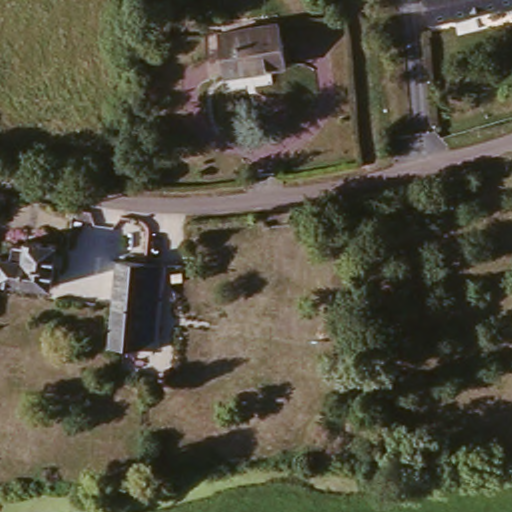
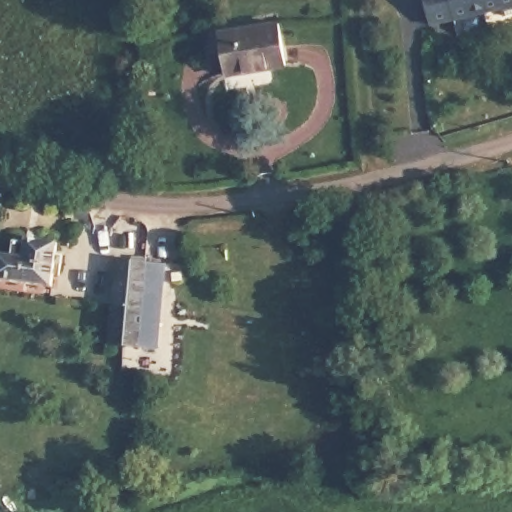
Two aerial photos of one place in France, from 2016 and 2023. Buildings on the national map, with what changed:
unchanged [(505,18),(501,7),(431,25),(424,0),(512,0),(512,15),(505,18)]
unchanged [(287,23),(295,66),(233,76),(225,34),(287,23)]
unchanged [(6,249),(24,252),(25,237),(36,238),(36,233),(70,237),(63,283),(5,275),(6,249)]
unchanged [(170,264),(162,348),(112,346),(117,306),(122,261),(155,263),(170,264)]

